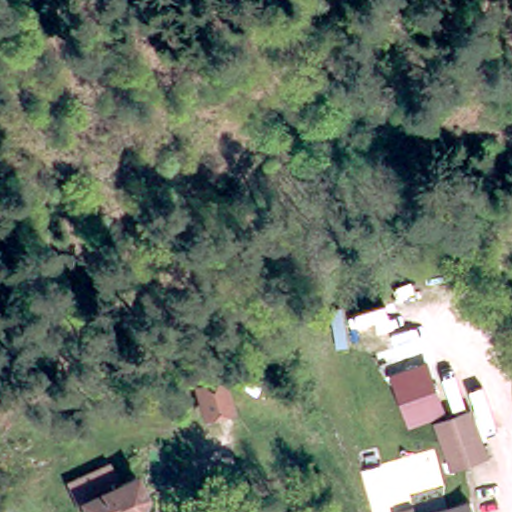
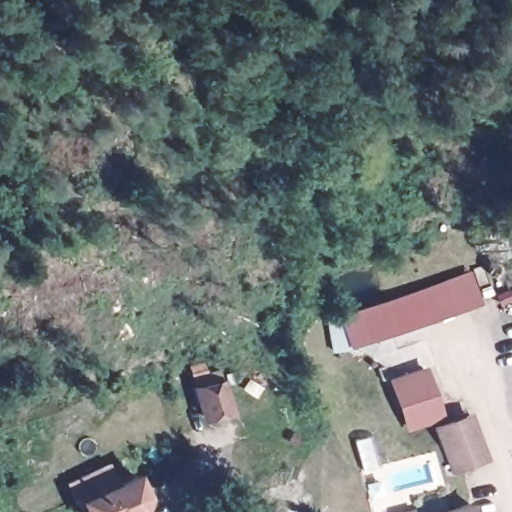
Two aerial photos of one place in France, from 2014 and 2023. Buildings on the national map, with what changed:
new [(326,321),(471,270),(482,303),(336,353),(326,321)]
unchanged [(206,376),(192,380),(189,370),(202,365),(206,376)]
unchanged [(445,416),(409,429),(391,377),(427,365),(445,416)]
unchanged [(203,417),(195,389),(216,382),(225,410),(203,417)]
unchanged [(478,462),(445,471),(432,428),(446,425),(466,419),(476,456),(478,462)]
unchanged [(146,498),(144,512),(91,512),(88,505),(82,507),(74,485),(116,470),(125,490),(140,484),(146,498)]
unchanged [(467,512),(456,512),(466,510),(467,512)]

